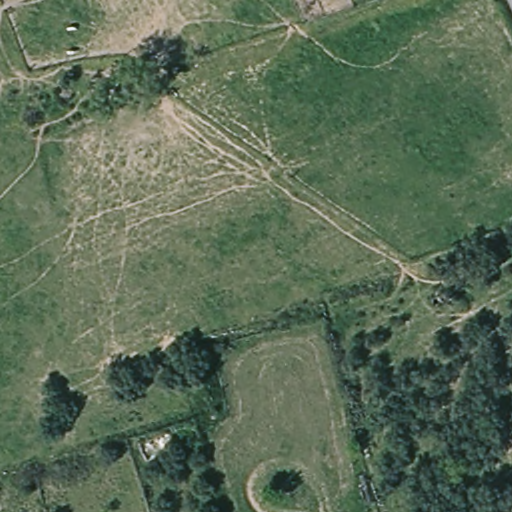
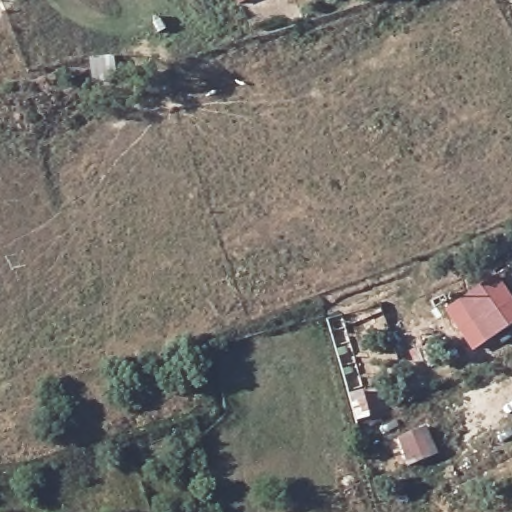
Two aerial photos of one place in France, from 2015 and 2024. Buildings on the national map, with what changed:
new [(512,298),(512,326),(473,353),(445,311),(497,275),(512,298)]

